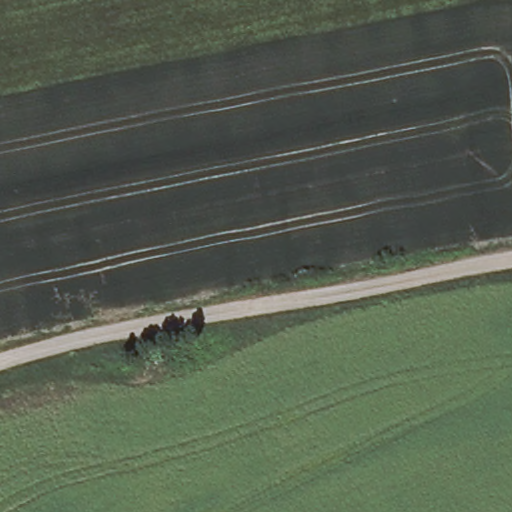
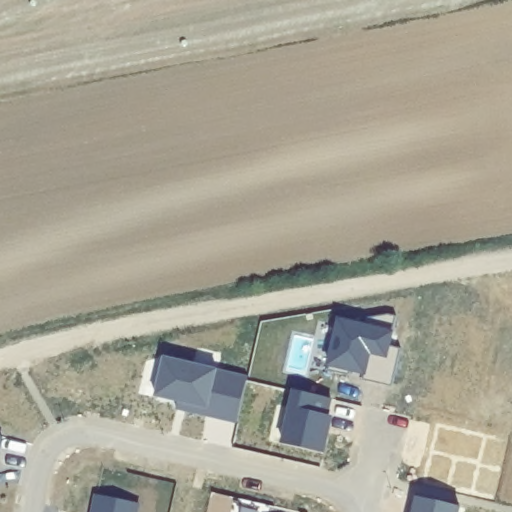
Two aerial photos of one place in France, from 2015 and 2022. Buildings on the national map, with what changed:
new [(339,325),(345,323),(364,329),(366,320),(388,317),(396,319),(390,348),(400,350),(392,389),(362,382),(364,375),(350,372),(349,378),(328,373),(336,335),(339,325)]
new [(165,360),(247,379),(237,425),(181,412),(183,405),(155,399),(165,360)]
new [(331,398),(328,415),(330,416),(323,453),(280,444),(292,389),(331,398)]
new [(485,435),(472,493),(425,483),(437,426),(485,435)]
new [(0,438),(2,438),(0,446),(0,438)]
new [(139,506),(138,512),(95,512),(97,497),(139,506)]
new [(456,512),(411,512),(414,497),(457,507),(456,512)]

